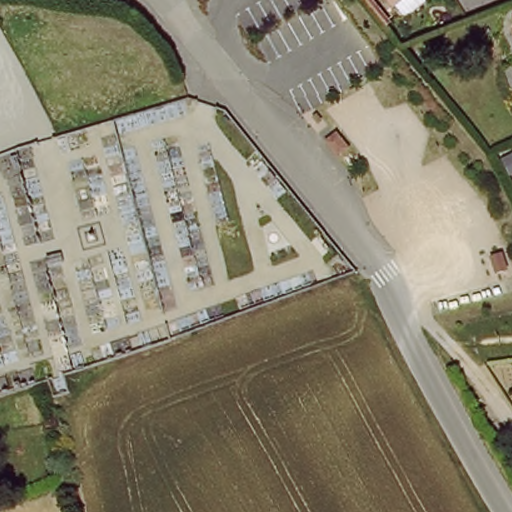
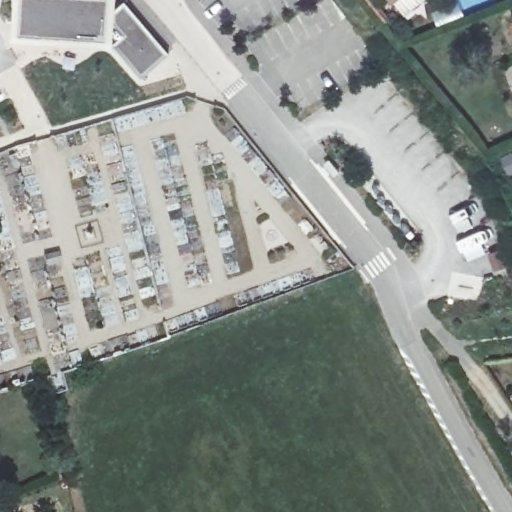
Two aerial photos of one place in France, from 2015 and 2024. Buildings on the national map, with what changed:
new [(14,42),(15,0),(123,0),(127,4),(169,54),(143,77),(118,48),(14,42)]
unchanged [(512,30),(512,34),(511,30),(512,30)]
unchanged [(68,397),(50,402),(35,406),(32,388),(64,378),(68,397)]

